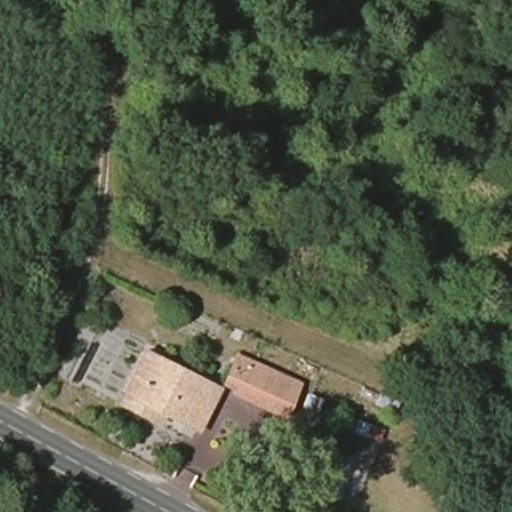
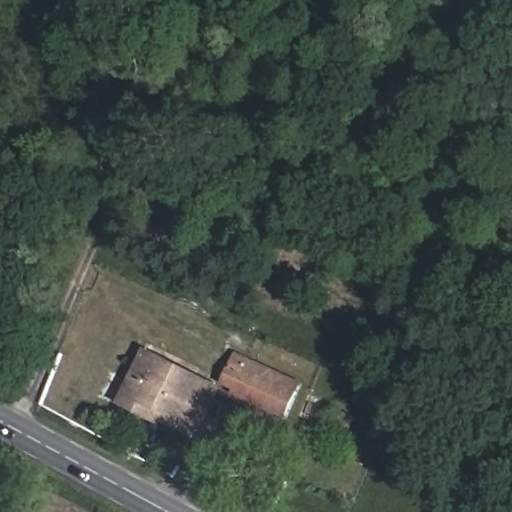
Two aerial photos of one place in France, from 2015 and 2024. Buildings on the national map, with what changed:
unchanged [(159,370),(163,361),(221,392),(201,435),(125,397),(142,361),(159,370)]
unchanged [(287,420),(235,396),(238,393),(226,387),(235,367),(250,371),(254,362),(303,387),(300,395),(287,420)]

